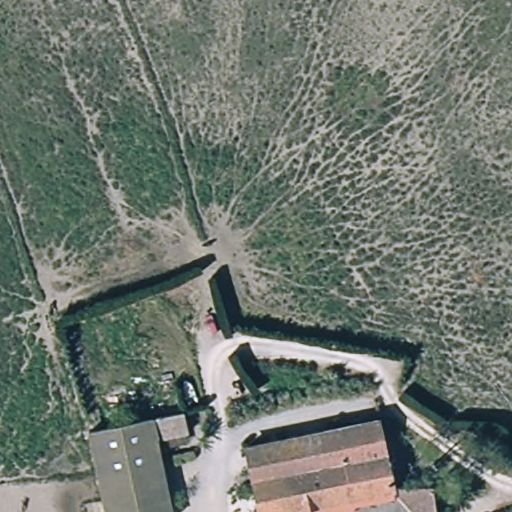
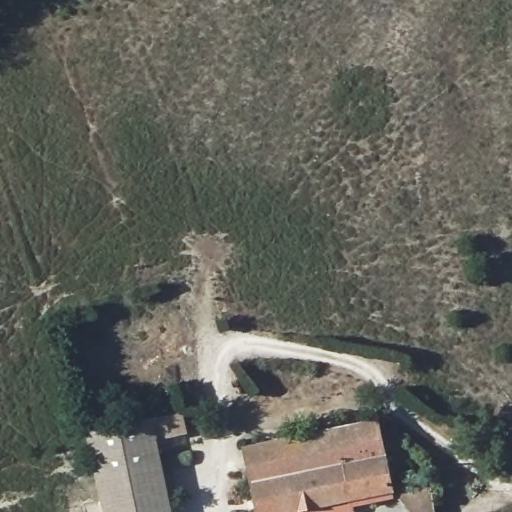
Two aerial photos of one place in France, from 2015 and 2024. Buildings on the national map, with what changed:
unchanged [(160,482),(137,484),(105,480),(98,429),(192,417),(195,439),(163,443),(168,480),(160,482)]
unchanged [(250,489),(260,487),(252,447),(386,419),(400,490),(296,512),(254,512),(250,489)]
unchanged [(172,512),(109,512),(105,480),(137,484),(160,482),(168,480),(172,512)]

